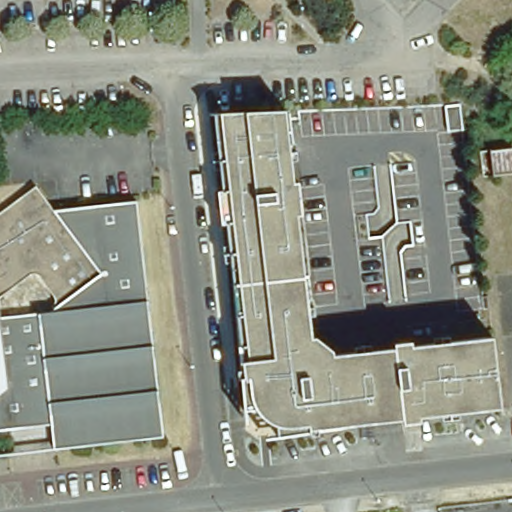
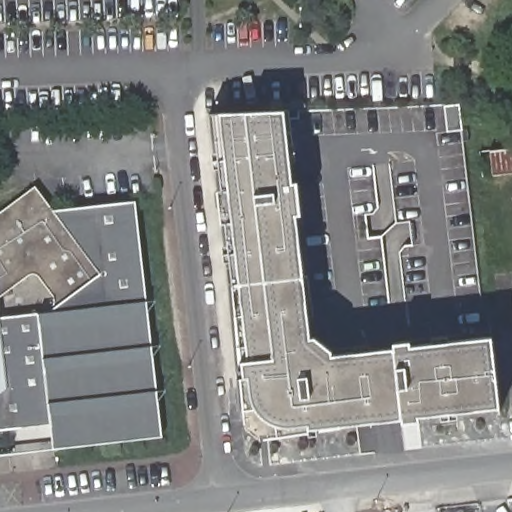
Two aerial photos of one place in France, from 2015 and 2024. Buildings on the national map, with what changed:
unchanged [(461,106),(463,131),(449,133),(446,107),(461,106)]
unchanged [(209,117),(280,115),(290,187),(294,187),(298,220),(292,221),(307,342),(311,342),(327,356),(328,360),(359,356),(368,426),(277,437),(275,417),(262,407),(243,409),(207,117),(209,117)]
unchanged [(512,153),(512,179),(489,182),(486,156),(512,153)]
unchanged [(50,204),(131,195),(159,428),(51,440),(47,418),(0,423),(0,203),(32,180),(50,204)]
unchanged [(484,342),(485,357),(491,412),(398,422),(390,353),(484,342)]
unchanged [(368,426),(359,356),(390,353),(398,422),(368,426)]

